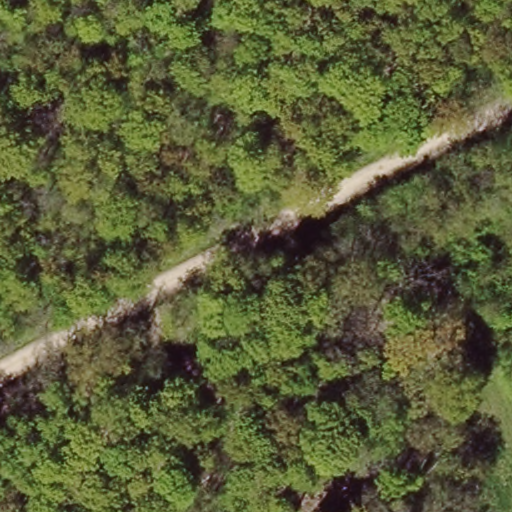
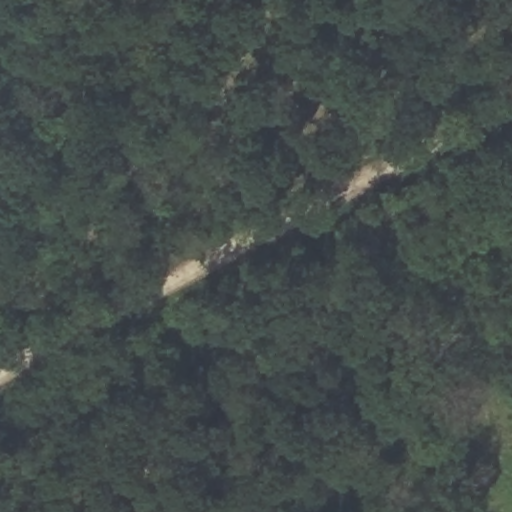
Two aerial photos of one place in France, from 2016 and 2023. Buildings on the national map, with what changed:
[]

